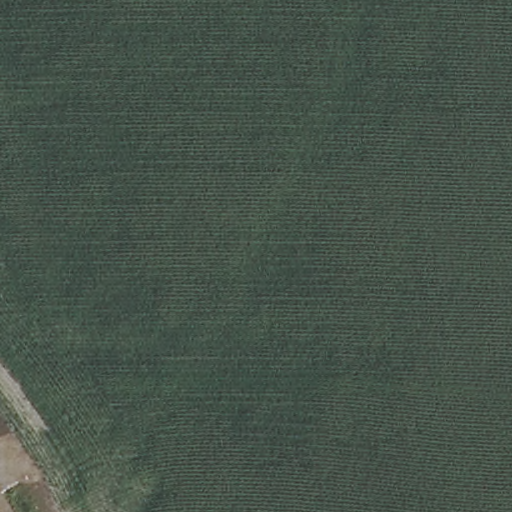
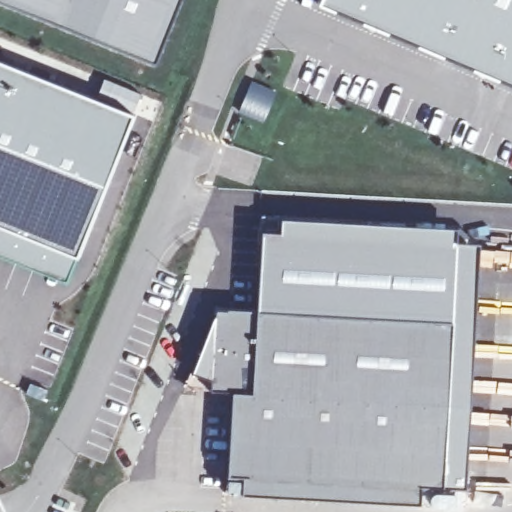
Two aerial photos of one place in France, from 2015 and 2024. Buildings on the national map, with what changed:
new [(154,62),(0,0),(179,0),(154,62)]
new [(512,84),(317,2),(318,0),(512,0),(512,84)]
new [(103,76),(141,92),(133,112),(75,255),(63,280),(0,256),(0,58),(95,95),(103,76)]
new [(252,79),(277,91),(263,124),(237,111),(252,79)]
new [(419,483),(418,503),(241,492),(242,474),(227,473),(230,390),(208,389),(213,307),(256,308),(450,320),(442,484),(419,483)]

